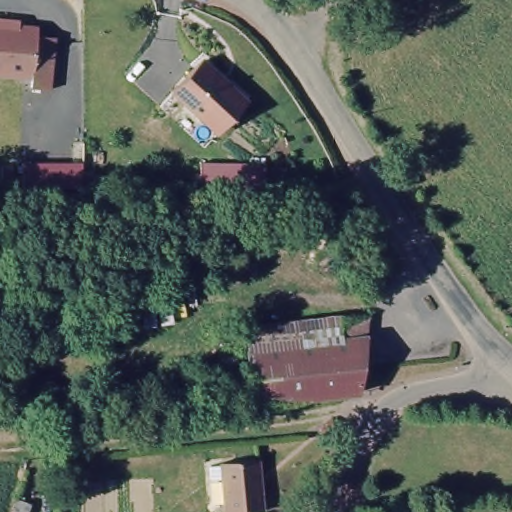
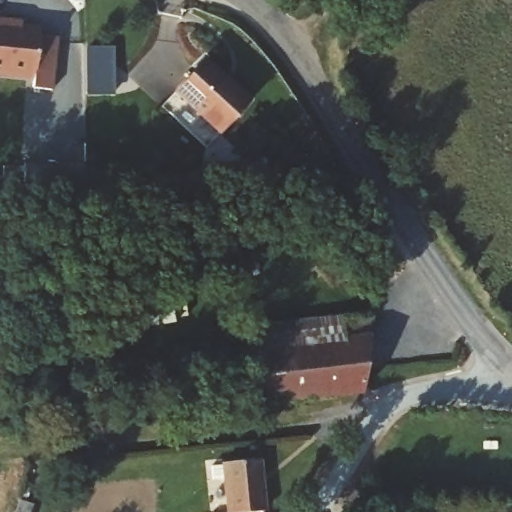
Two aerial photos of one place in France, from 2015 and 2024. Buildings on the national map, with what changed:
unchanged [(21,29),(40,30),(39,43),(57,44),(53,92),(32,91),(34,79),(0,76),(0,23),(22,24),(21,29)]
new [(84,46),(113,46),(115,96),(85,96),(84,46)]
unchanged [(203,62),(248,103),(221,135),(175,94),(203,62)]
unchanged [(97,194),(85,194),(24,192),(25,167),(85,169),(85,178),(97,178),(97,194)]
unchanged [(363,396),(258,408),(252,356),(247,325),(342,313),(371,315),(363,396)]
unchanged [(260,458),(265,512),(231,512),(225,462),(260,458)]

